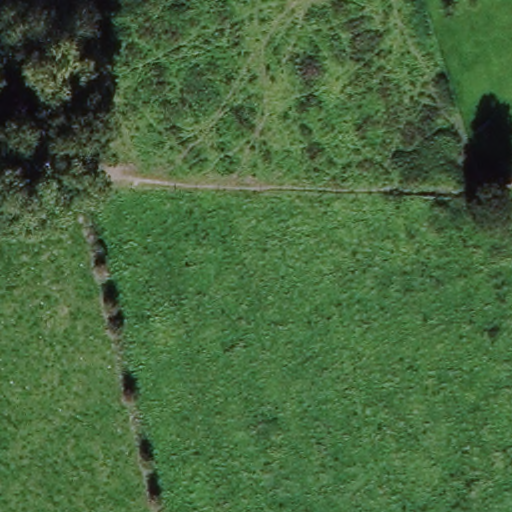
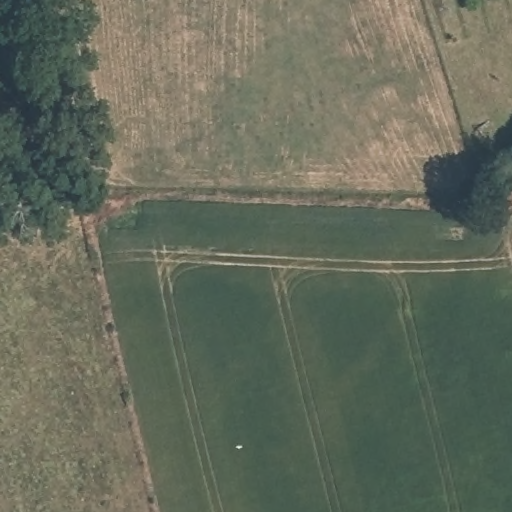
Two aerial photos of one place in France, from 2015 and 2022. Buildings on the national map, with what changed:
unchanged [(0,147),(4,147),(3,161),(0,160),(0,147)]

